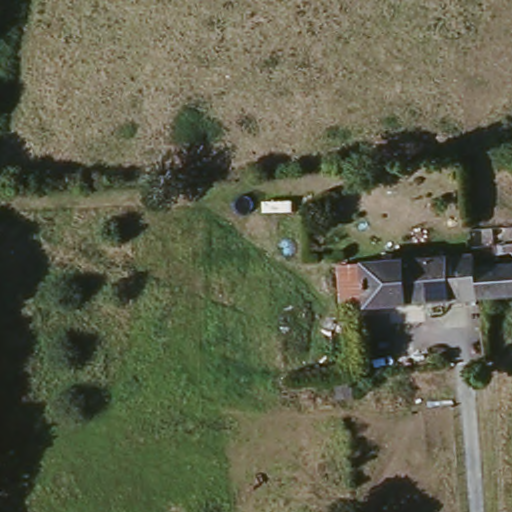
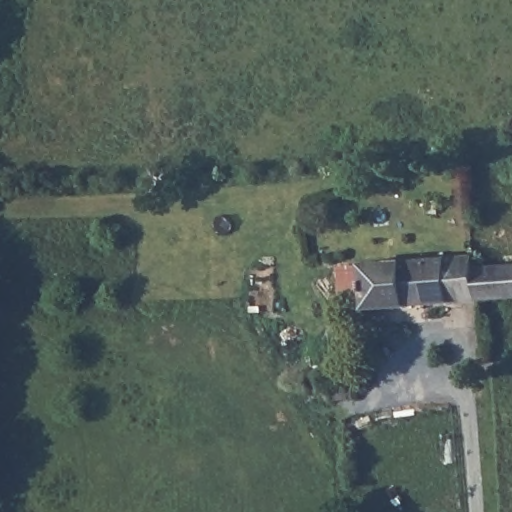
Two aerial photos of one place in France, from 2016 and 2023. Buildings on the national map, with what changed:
unchanged [(357,262),(474,254),(476,298),(361,307),(341,308),(338,263),(357,262)]
unchanged [(480,267),(512,264),(512,296),(476,298),(474,254),(478,254),(480,267)]

